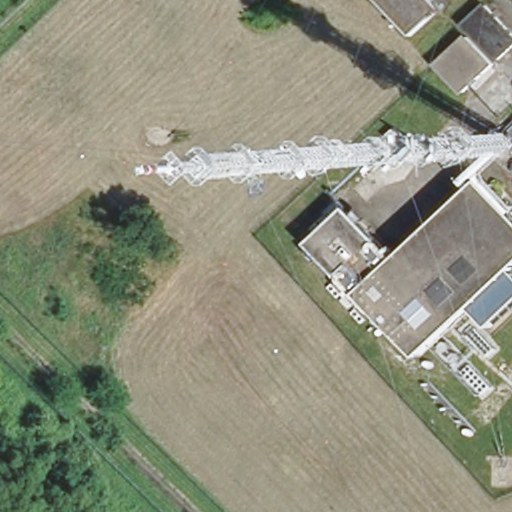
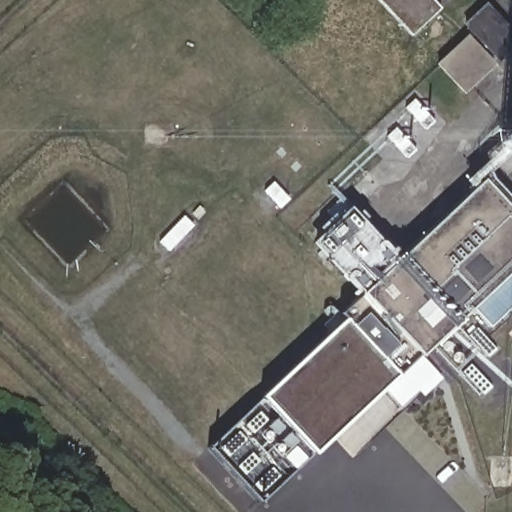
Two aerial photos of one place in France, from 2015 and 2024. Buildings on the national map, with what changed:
unchanged [(413,35),(380,0),(435,0),(442,7),(413,35)]
unchanged [(500,54),(471,21),(492,0),(493,0),(512,23),(512,44),(500,54)]
unchanged [(494,62),(465,92),(441,64),(470,37),(494,62)]
unchanged [(398,265),(398,266),(399,265),(482,179),(503,201),(512,209),(512,266),(509,268),(471,308),(431,350),(371,293),(363,286),(319,245),(348,215),(398,265)]
new [(509,268),(512,271),(512,305),(489,327),(471,308),(509,268)]
new [(339,321),(332,312),(363,286),(371,293),(431,350),(316,454),(259,395),(339,321)]
new [(207,444),(259,395),(316,454),(261,504),(207,444)]

